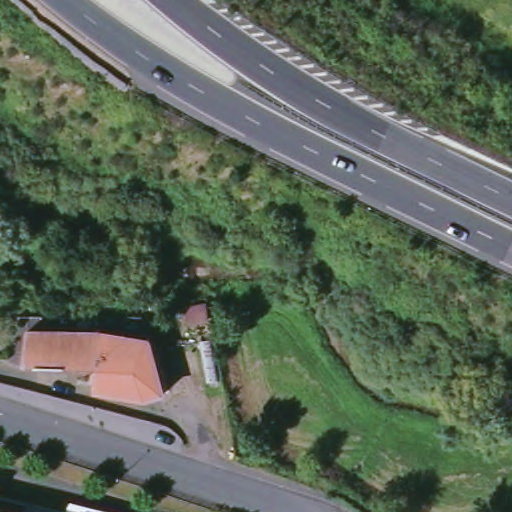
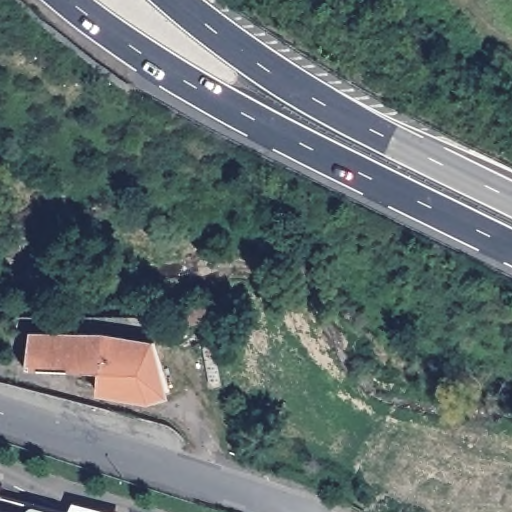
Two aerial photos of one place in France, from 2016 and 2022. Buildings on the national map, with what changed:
unchanged [(173,407),(154,413),(98,402),(99,385),(34,381),(18,377),(24,331),(153,331),(160,356),(173,407)]
unchanged [(212,338),(219,380),(207,381),(200,340),(212,338)]
unchanged [(77,512),(0,512),(0,491),(77,512)]

